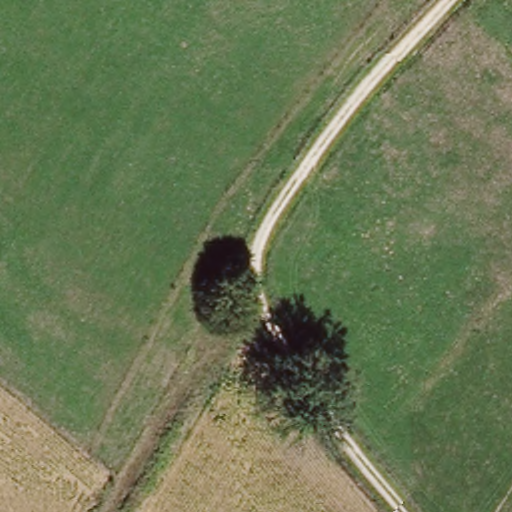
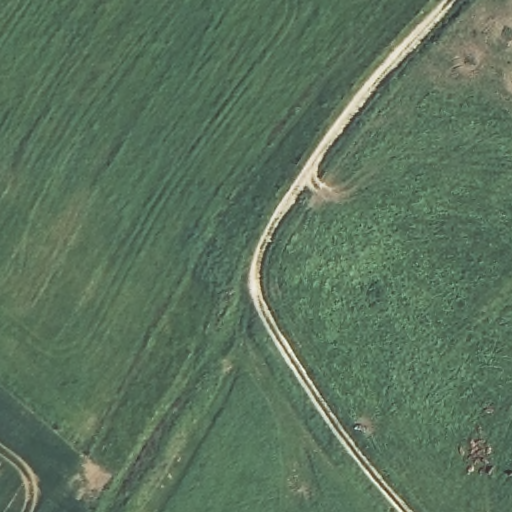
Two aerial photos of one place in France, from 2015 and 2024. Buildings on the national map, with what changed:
[]

